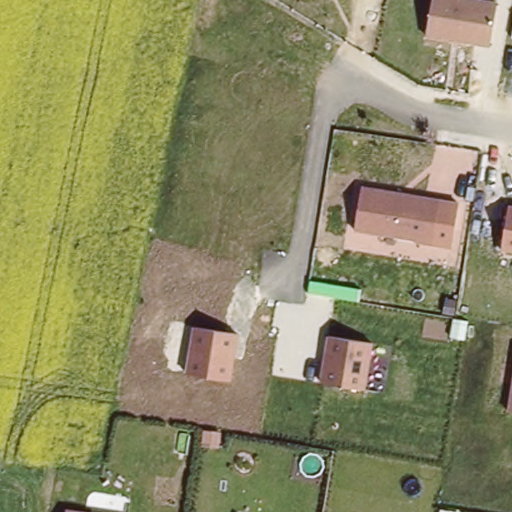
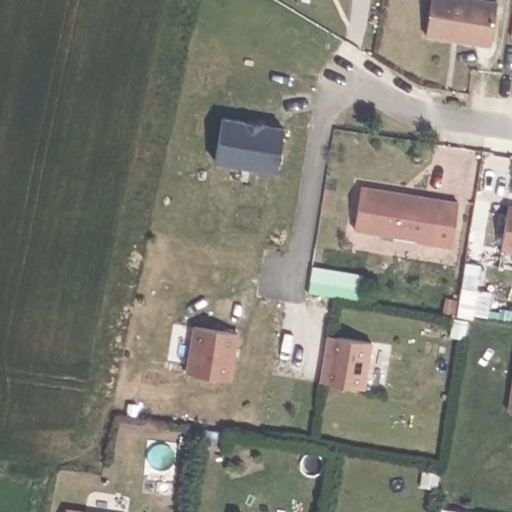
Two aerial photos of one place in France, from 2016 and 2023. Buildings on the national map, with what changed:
unchanged [(486,43),(426,34),(430,0),(491,0),(486,43)]
new [(282,129),(276,172),(215,163),(222,119),(282,129)]
unchanged [(452,245),(432,242),(356,229),(364,185),(440,197),(458,200),(452,245)]
unchanged [(509,206),(512,207),(512,251),(502,249),(509,206)]
unchanged [(192,328),(238,334),(231,382),(185,373),(192,328)]
unchanged [(374,343),(365,390),(321,383),(329,334),(374,343)]
unchanged [(506,408),(512,372),(512,410),(506,408)]
unchanged [(60,512),(61,503),(111,512),(60,512)]

